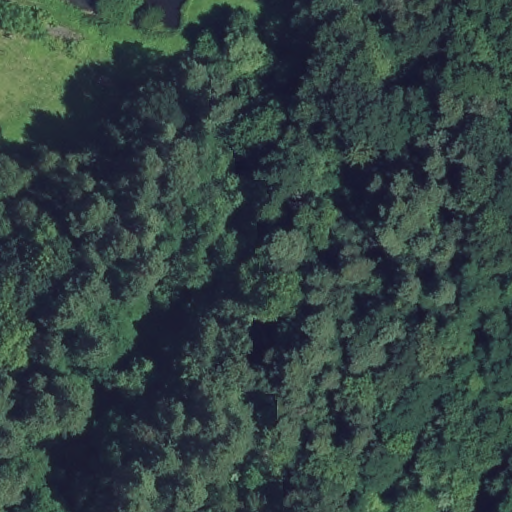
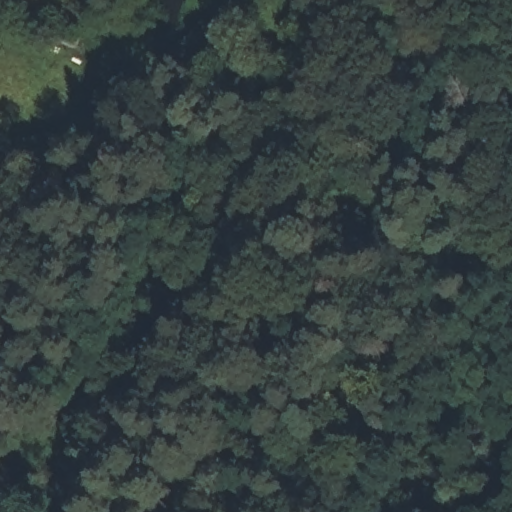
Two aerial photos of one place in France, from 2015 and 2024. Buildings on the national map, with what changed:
unchanged [(309,30),(341,43),(314,113),(279,97),(309,30)]

